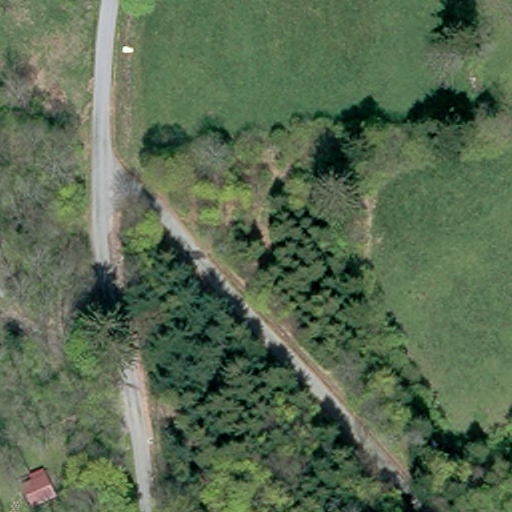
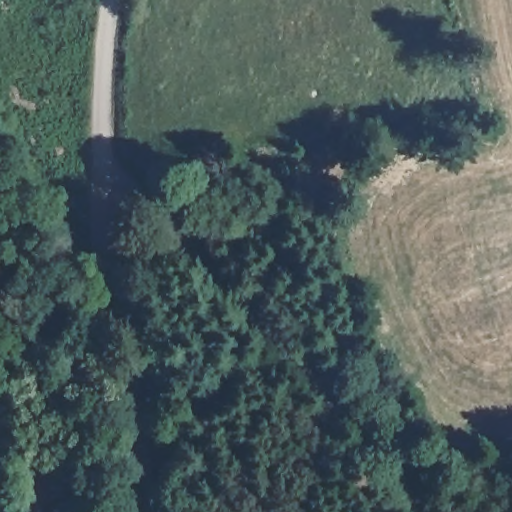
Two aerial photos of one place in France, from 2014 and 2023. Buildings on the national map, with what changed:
unchanged [(78,485),(54,501),(35,476),(60,460),(78,485)]

